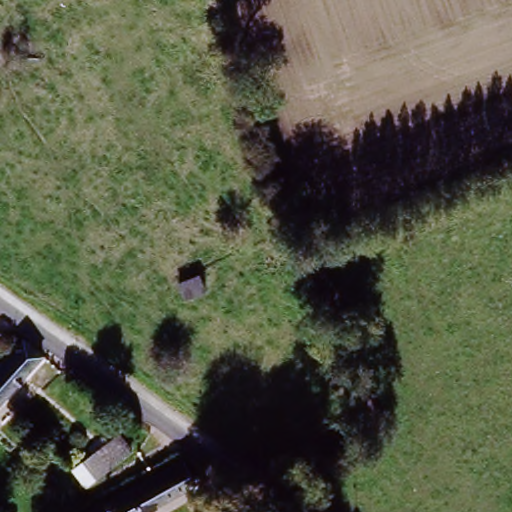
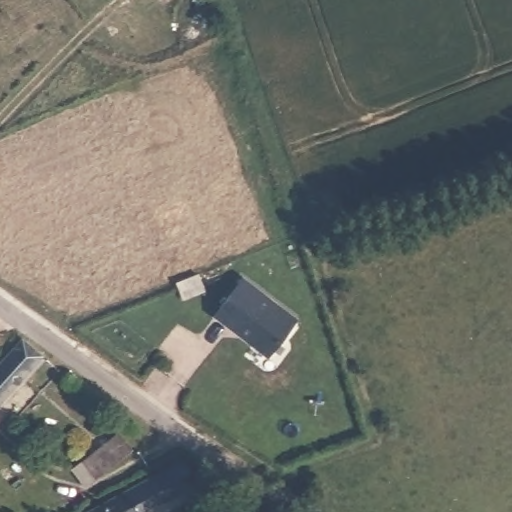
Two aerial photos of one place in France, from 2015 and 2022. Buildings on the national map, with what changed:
demolished [(356,296),(340,247),(356,240),(374,292),(356,296)]
unchanged [(198,276),(206,299),(185,306),(177,282),(198,276)]
new [(216,317),(244,280),(297,320),(270,357),(243,337),(232,328),(216,317)]
unchanged [(0,363),(32,327),(51,343),(10,390),(0,381),(0,363)]
unchanged [(0,402),(0,381),(10,390),(0,402)]
unchanged [(120,435),(131,448),(97,474),(87,460),(120,435)]
unchanged [(190,486),(142,512),(90,512),(180,463),(190,486)]

